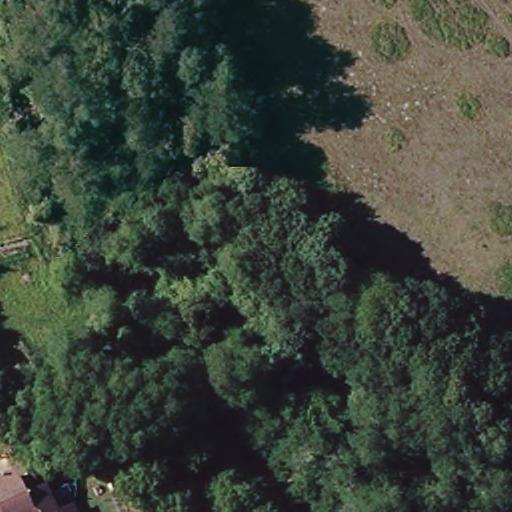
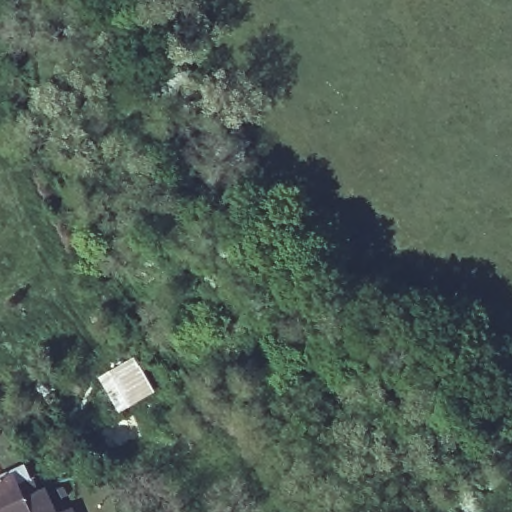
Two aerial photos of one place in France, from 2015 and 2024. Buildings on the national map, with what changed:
new [(104,383),(130,362),(137,371),(140,369),(152,393),(119,411),(104,383)]
unchanged [(34,488),(0,501),(0,473),(11,469),(15,482),(30,477),(34,488)]
unchanged [(34,488),(38,486),(49,512),(0,512),(0,501),(34,488)]
unchanged [(78,510),(79,512),(74,512),(78,510)]

